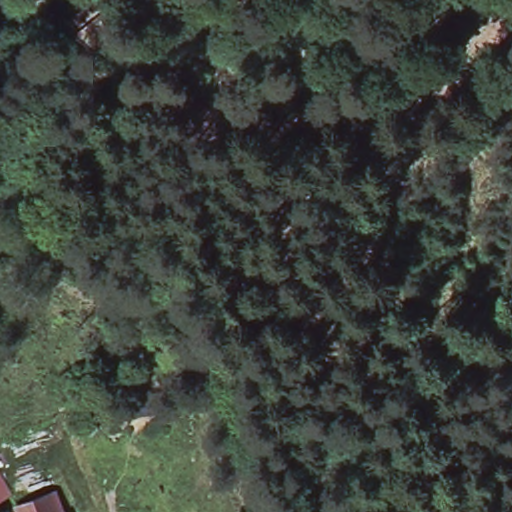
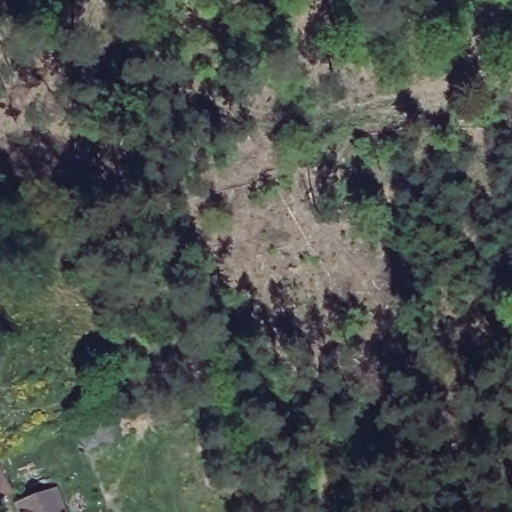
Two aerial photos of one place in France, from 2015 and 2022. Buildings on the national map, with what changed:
unchanged [(0,449),(6,461),(21,490),(0,500),(0,449)]
unchanged [(19,512),(16,504),(55,490),(64,512),(19,512)]

